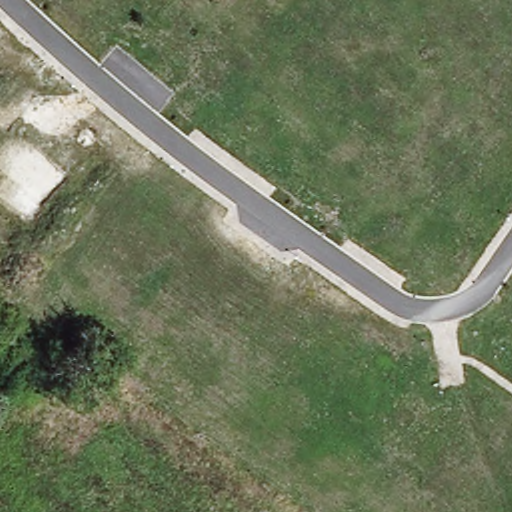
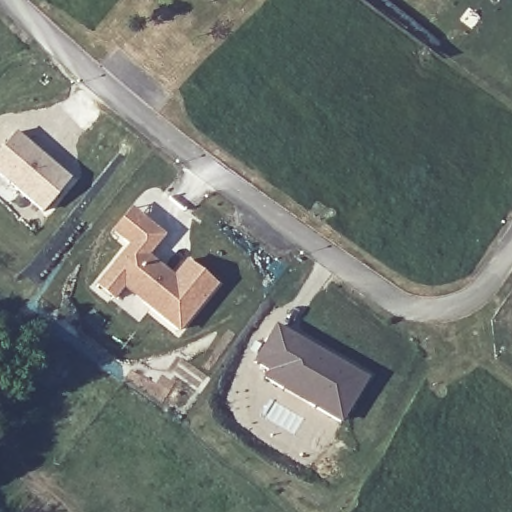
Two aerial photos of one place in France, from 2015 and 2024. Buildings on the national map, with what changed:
new [(15,132),(71,177),(46,209),(0,172),(0,151),(15,132)]
new [(132,245),(126,240),(114,230),(132,207),(144,218),(165,235),(149,255),(177,278),(190,261),(217,285),(181,331),(125,286),(114,300),(99,286),(110,275),(132,245)]
new [(276,327),(307,344),(306,348),(332,363),(333,361),(366,380),(341,421),(267,377),(271,369),(256,360),(276,327)]

